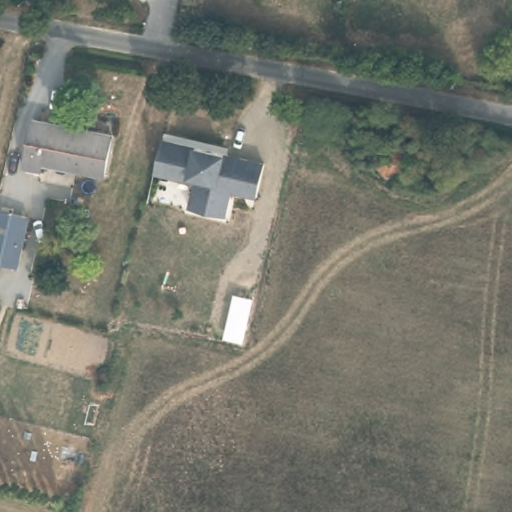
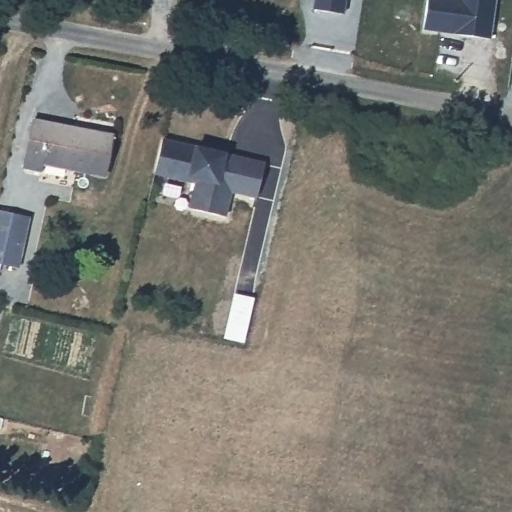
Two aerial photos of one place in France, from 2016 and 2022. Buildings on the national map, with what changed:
unchanged [(313,0),(344,0),(343,14),(313,8),(313,0)]
new [(424,30),(427,0),(497,0),(491,40),(424,30)]
unchanged [(109,132),(100,175),(39,162),(38,168),(21,165),(31,116),(109,132)]
demolished [(397,135),(388,176),(361,172),(369,131),(397,135)]
unchanged [(264,161),(256,194),(230,187),(224,213),(189,205),(196,179),(155,169),(164,136),(264,161)]
unchanged [(24,246),(19,268),(0,264),(0,209),(14,212),(31,217),(24,246)]

